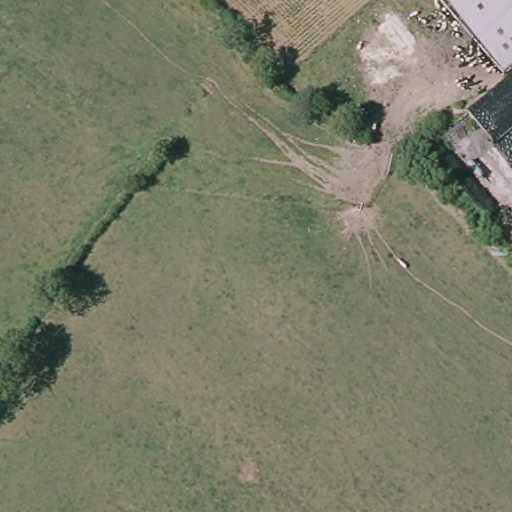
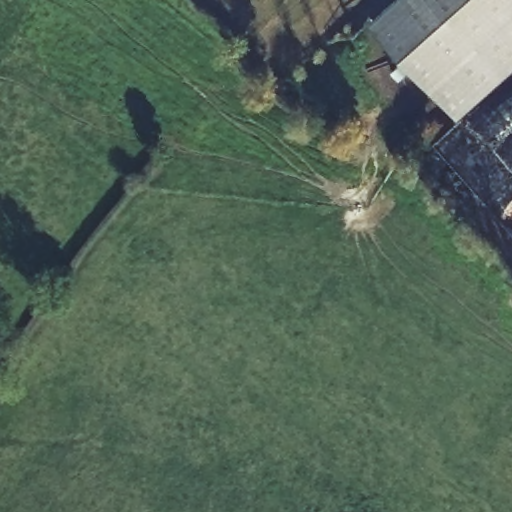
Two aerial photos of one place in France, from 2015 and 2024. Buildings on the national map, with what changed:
new [(458,115),(374,19),(395,0),(436,0),(503,79),(458,115)]
unchanged [(436,0),(512,0),(512,71),(503,79),(436,0)]

